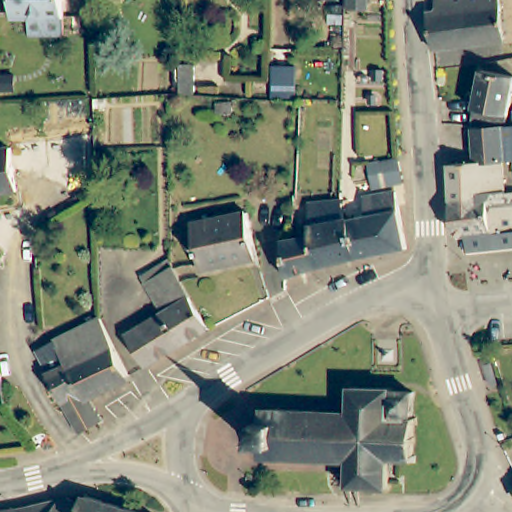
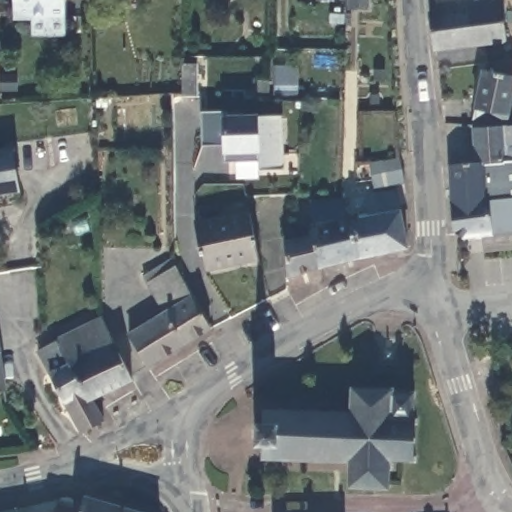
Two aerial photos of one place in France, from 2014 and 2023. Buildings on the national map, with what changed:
unchanged [(32,35),(32,17),(14,17),(14,0),(65,0),(65,17),(65,35),(32,35)]
unchanged [(504,29),(505,36),(503,40),(433,50),(428,12),(437,12),(436,0),(500,0),(504,29)]
unchanged [(182,94),(182,64),(197,64),(197,94),(182,94)]
unchanged [(274,67),(292,67),(291,101),(273,100),(274,67)]
unchanged [(512,75),(512,92),(506,125),(472,127),(483,70),(512,75)]
demolished [(219,103),(234,102),(235,112),(220,113),(219,103)]
new [(285,169),(261,171),(259,161),(226,162),(221,145),(202,146),(202,113),(220,115),(257,114),(282,116),(285,169)]
unchanged [(477,162),(477,151),(475,128),(491,127),(507,126),(512,126),(512,161),(503,161),(477,162)]
unchanged [(18,191),(0,193),(0,149),(12,147),(18,191)]
unchanged [(375,189),(370,164),(399,157),(400,160),(405,182),(375,189)]
unchanged [(468,253),(467,237),(462,237),(454,231),(451,202),(450,165),(477,162),(503,161),(505,192),(512,192),(512,248),(468,253)]
unchanged [(312,226),(310,204),(342,200),(343,204),(346,220),(358,217),(357,214),(368,212),(366,196),(396,191),(407,248),(356,258),(318,267),(313,236),(312,226)]
unchanged [(249,212),(258,257),(204,268),(195,223),(249,212)]
unchanged [(318,267),(287,277),(284,241),(313,236),(318,267)]
unchanged [(192,297),(210,328),(147,366),(129,335),(165,312),(147,283),(143,277),(172,258),(173,261),(175,265),(192,296),(192,297)]
unchanged [(57,340),(102,317),(130,375),(132,380),(91,398),(103,420),(82,432),(48,373),(50,372),(48,370),(37,350),(47,346),(57,340)]
unchanged [(0,391),(0,360),(5,390),(0,391)]
unchanged [(408,460),(392,460),(392,461),(390,461),(389,489),(348,487),(350,461),(318,460),(318,462),(313,462),(313,460),(281,459),(281,461),(277,461),(278,458),(261,458),(262,445),(255,445),(255,422),(262,422),(262,411),(262,410),(277,410),(277,407),(282,407),(282,410),(314,411),(315,409),(318,409),(319,412),(350,412),(351,387),(393,388),(393,390),(415,392),(413,417),(417,417),(417,426),(415,425),(413,455),(417,456),(416,462),(408,462),(408,460)]
unchanged [(67,498),(82,504),(85,496),(137,512),(56,512),(62,500),(67,498)]
unchanged [(62,500),(56,512),(3,512),(21,509),(62,500)]

